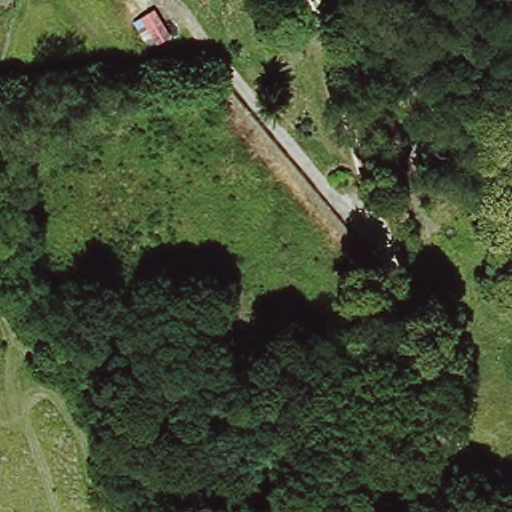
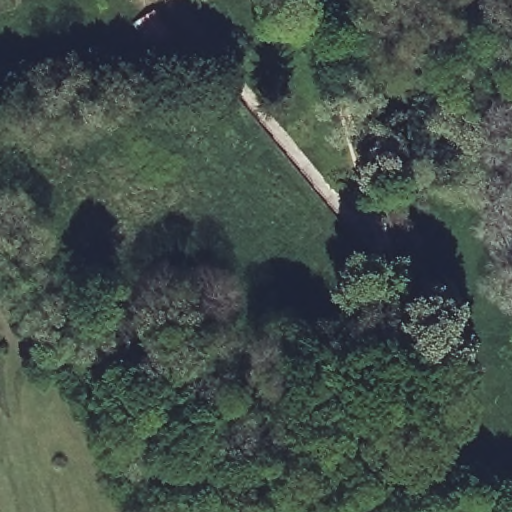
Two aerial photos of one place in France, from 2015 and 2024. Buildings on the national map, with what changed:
unchanged [(149,35),(132,44),(119,20),(136,10),(149,35)]

